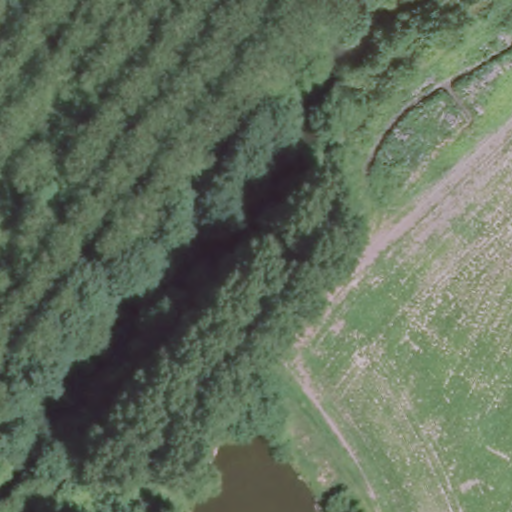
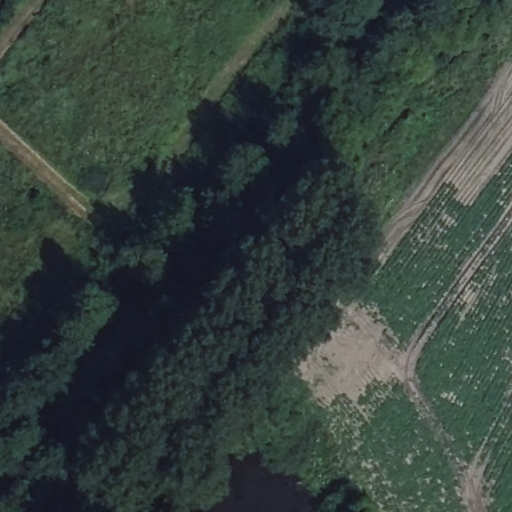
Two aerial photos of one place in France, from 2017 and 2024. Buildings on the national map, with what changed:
unchanged [(148,512),(142,512),(144,509),(148,512)]

